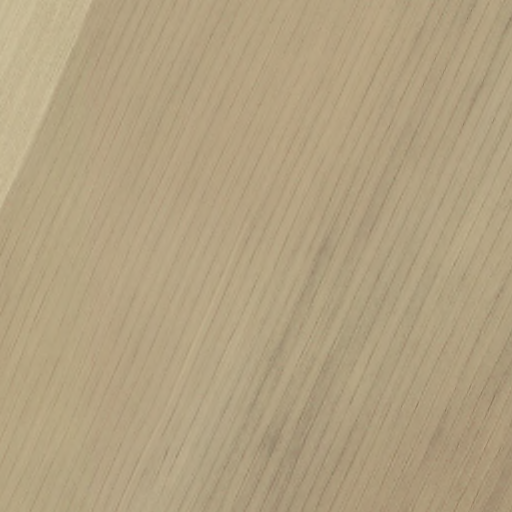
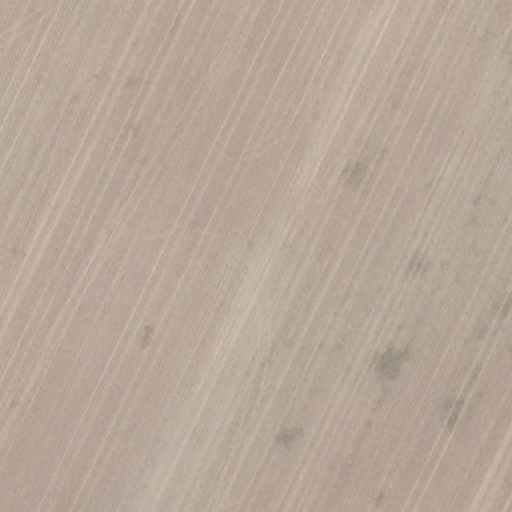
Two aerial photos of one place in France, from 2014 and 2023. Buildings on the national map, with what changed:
[]

